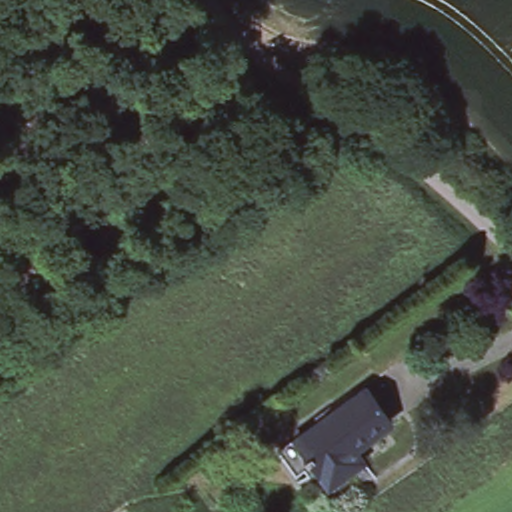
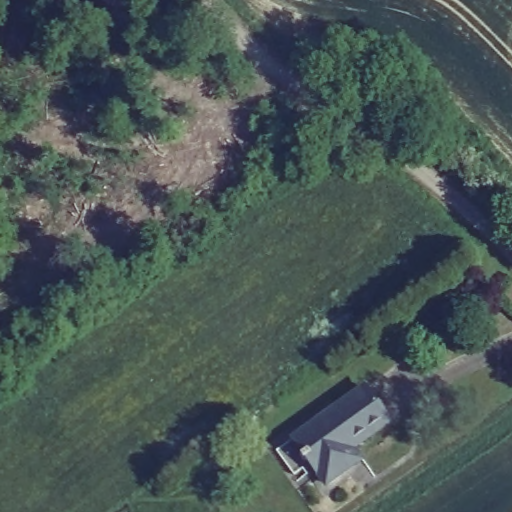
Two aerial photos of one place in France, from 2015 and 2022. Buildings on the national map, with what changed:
unchanged [(290,465),(277,447),(294,435),(365,384),(379,402),(390,418),(353,444),(362,456),(327,481),(310,459),(294,470),(290,465)]
unchanged [(213,469),(210,465),(204,458),(217,448),(222,455),(226,460),(213,469)]

